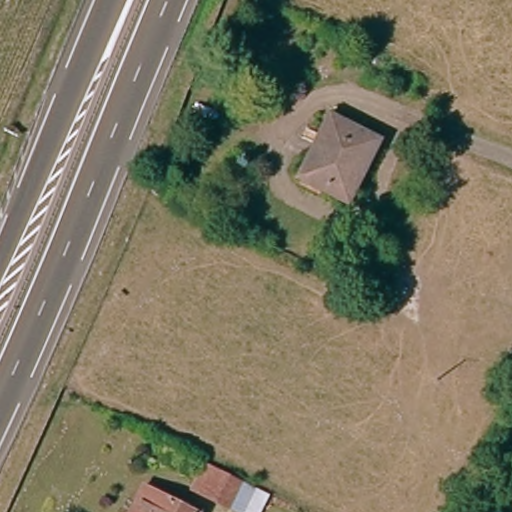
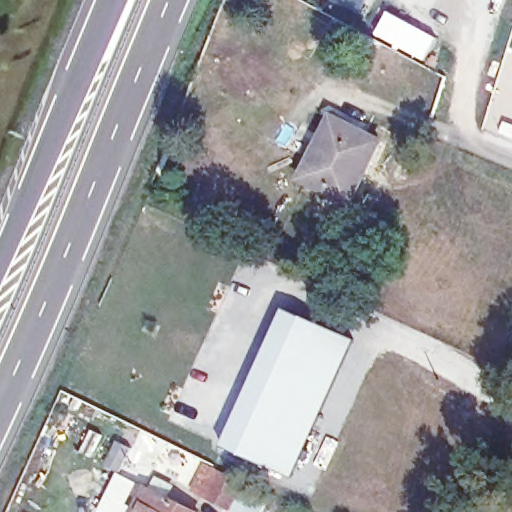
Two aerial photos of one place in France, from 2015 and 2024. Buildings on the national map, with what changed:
new [(386,10),(437,39),(423,62),(372,34),(386,10)]
unchanged [(373,139),(343,201),(301,180),(318,142),(309,138),(322,115),(373,139)]
new [(353,340),(291,477),(221,446),(284,308),(353,340)]
unchanged [(259,512),(235,512),(190,490),(199,459),(268,494),(259,512)]
new [(147,488),(155,475),(174,485),(167,497),(197,512),(97,512),(117,472),(147,488)]
demolished [(131,512),(143,487),(193,512),(131,512)]

